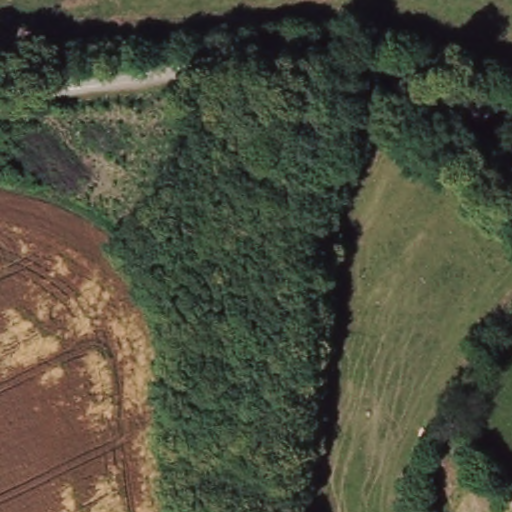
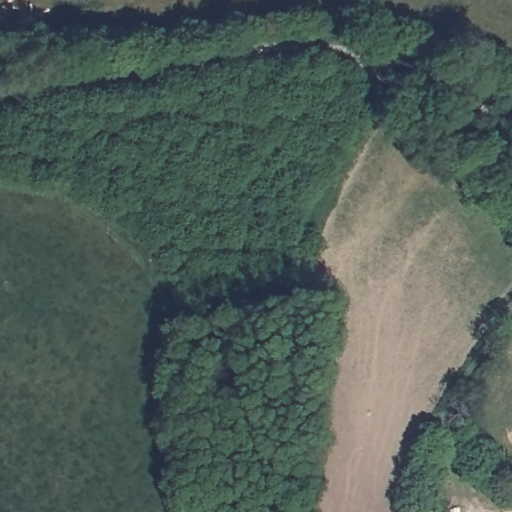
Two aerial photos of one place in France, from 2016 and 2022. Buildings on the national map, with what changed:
[]

